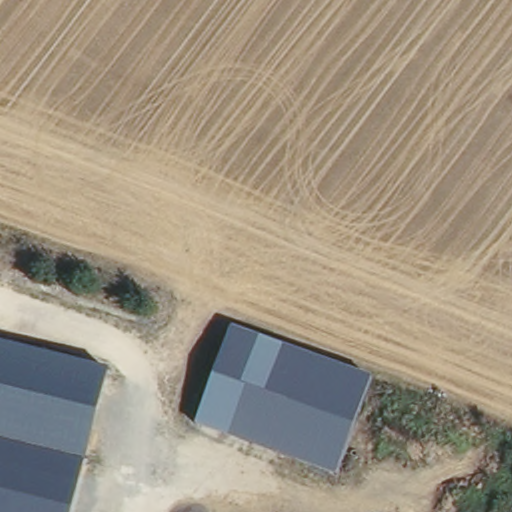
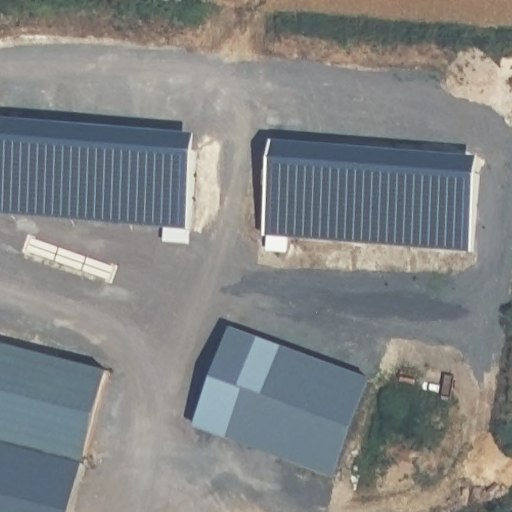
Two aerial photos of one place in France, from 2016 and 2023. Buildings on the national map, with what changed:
new [(197,138),(188,231),(0,215),(0,121),(197,138)]
new [(275,146),(482,162),(473,257),(266,240),(275,146)]
unchanged [(371,383),(334,478),(195,423),(231,330),(371,383)]
unchanged [(114,372),(90,460),(75,512),(0,512),(0,342),(114,372)]

